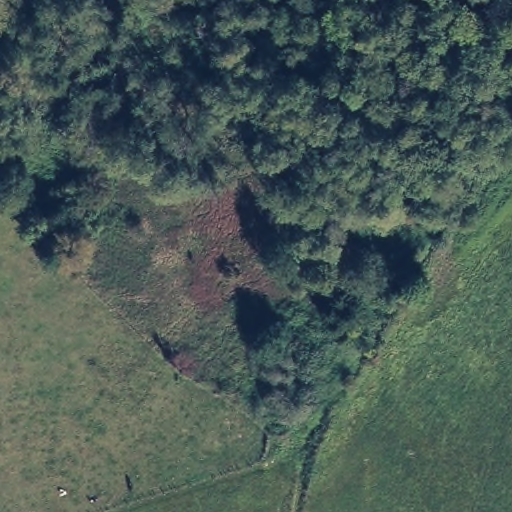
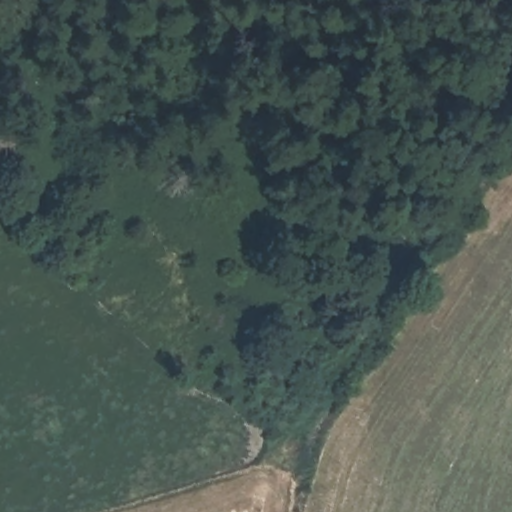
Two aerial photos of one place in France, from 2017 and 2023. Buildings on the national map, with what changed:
[]

